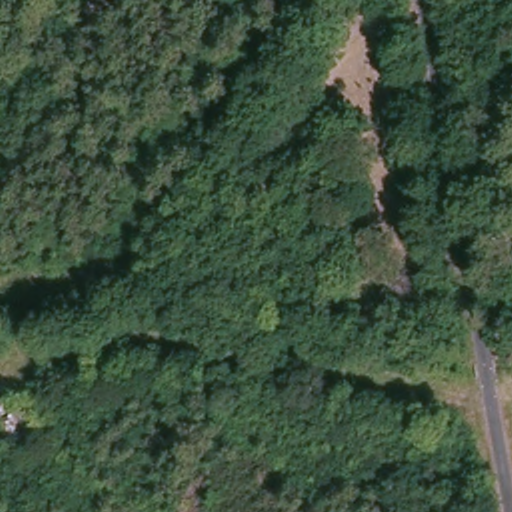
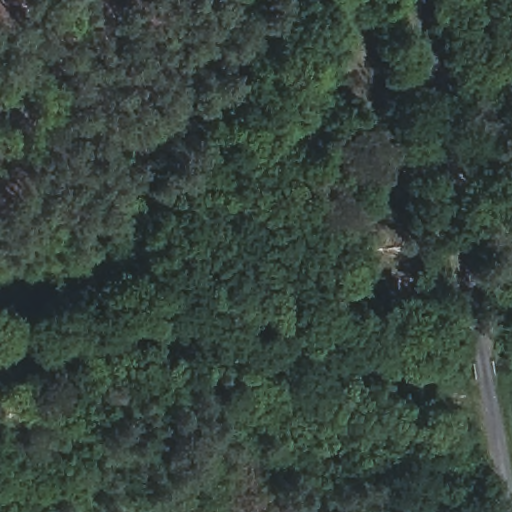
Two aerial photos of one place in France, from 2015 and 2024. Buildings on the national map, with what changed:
unchanged [(287,129),(295,117),(306,124),(320,110),(328,121),(305,145),(287,129)]
unchanged [(3,429),(5,421),(0,417),(0,401),(3,396),(17,404),(19,400),(38,409),(20,439),(3,429)]

